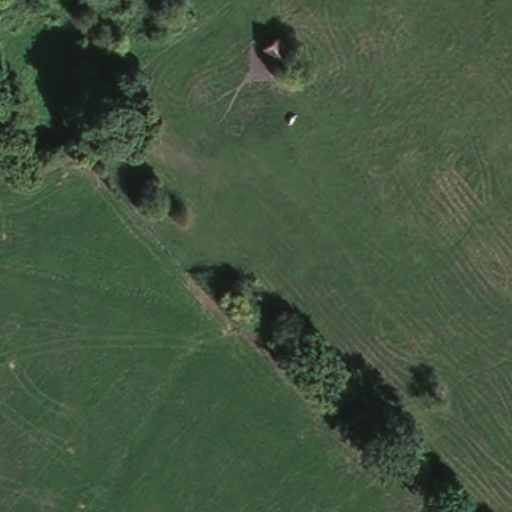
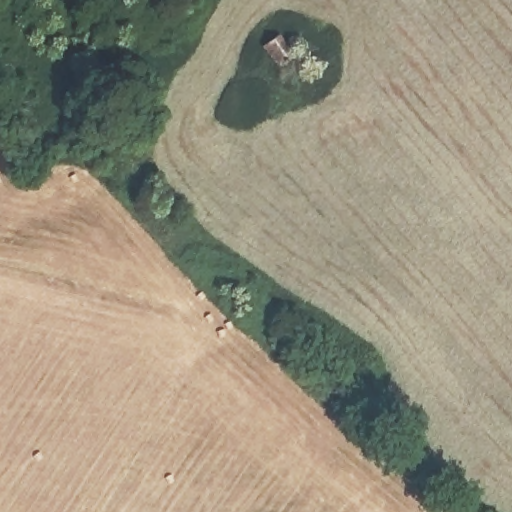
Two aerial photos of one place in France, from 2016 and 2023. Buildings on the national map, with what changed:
unchanged [(276,35),(304,64),(294,74),(266,44),(276,35)]

